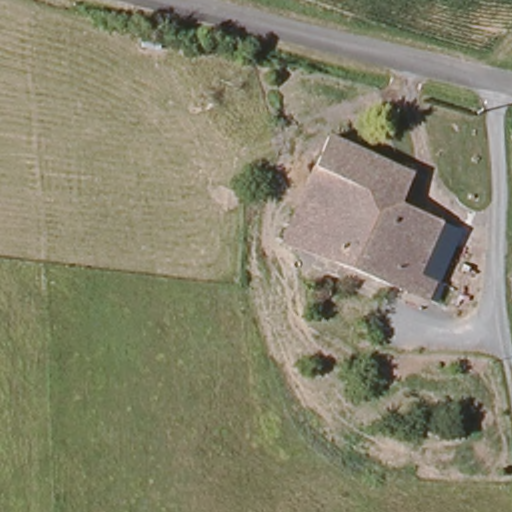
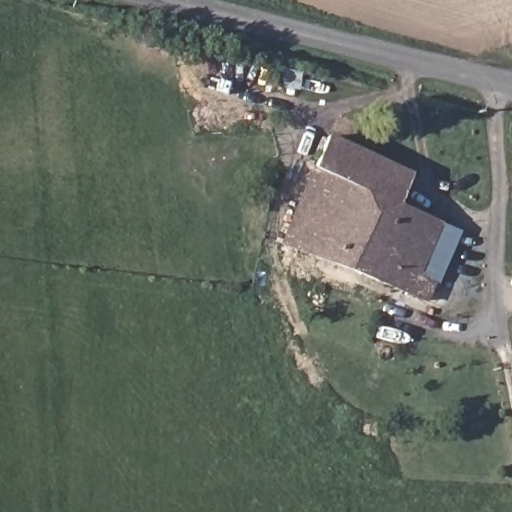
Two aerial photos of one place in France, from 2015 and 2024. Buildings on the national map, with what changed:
unchanged [(286,249),(283,247),(330,142),(330,141),(416,178),(404,207),(445,227),(425,277),(437,285),(426,307),(286,249)]

